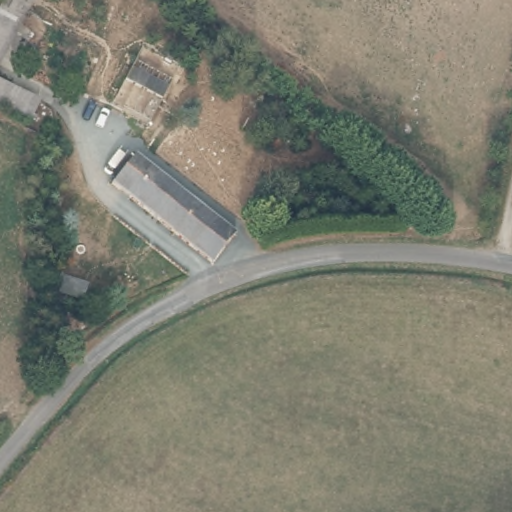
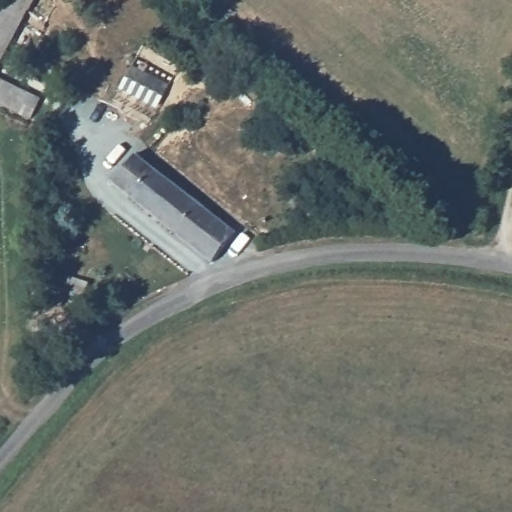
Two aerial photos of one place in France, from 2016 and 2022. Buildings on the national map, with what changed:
unchanged [(15,9),(0,40),(0,2),(15,9)]
unchanged [(0,85),(37,103),(26,125),(0,113),(0,85)]
unchanged [(136,154),(226,225),(243,238),(220,267),(110,186),(136,154)]
unchanged [(106,285),(101,297),(90,300),(66,291),(70,279),(106,285)]

